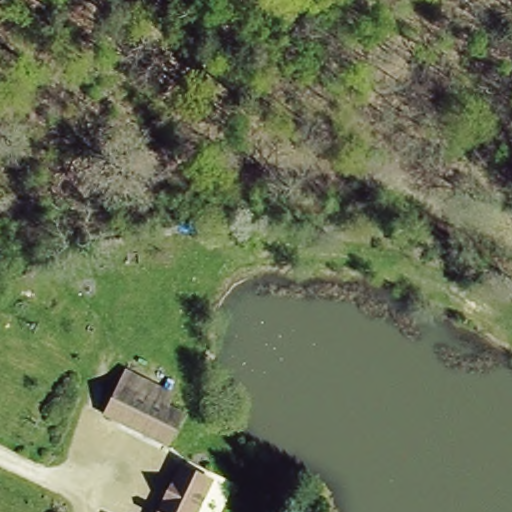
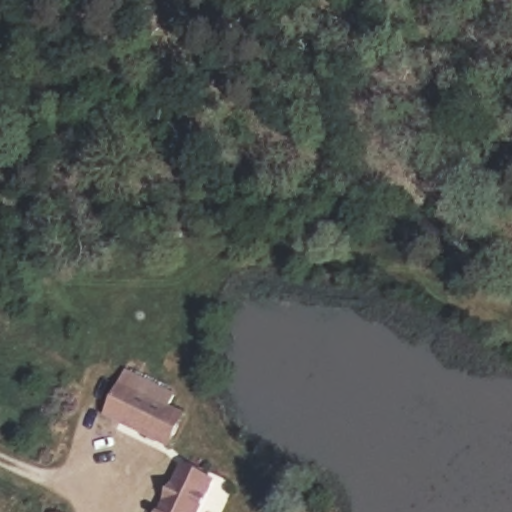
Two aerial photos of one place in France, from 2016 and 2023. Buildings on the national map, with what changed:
unchanged [(104,418),(122,364),(172,386),(177,375),(197,386),(167,444),(104,418)]
unchanged [(217,473),(199,512),(159,512),(180,458),(217,473)]

